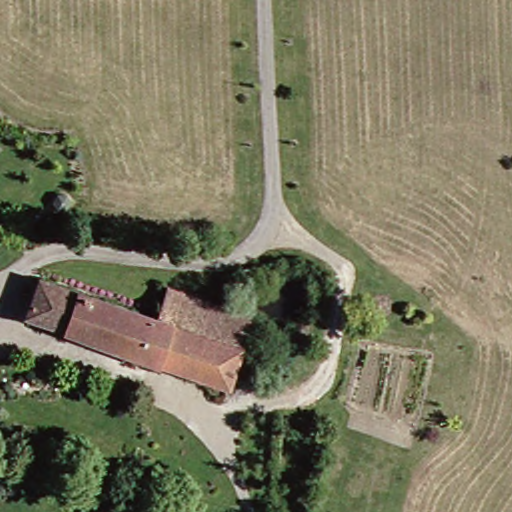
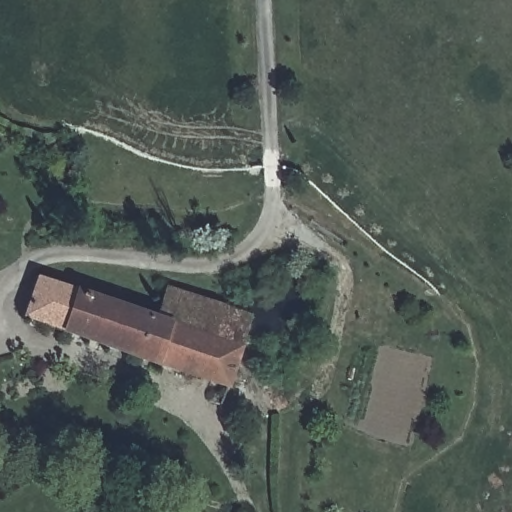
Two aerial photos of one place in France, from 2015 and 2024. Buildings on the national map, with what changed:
unchanged [(164,321),(174,292),(254,321),(231,387),(33,318),(47,280),(164,321)]

